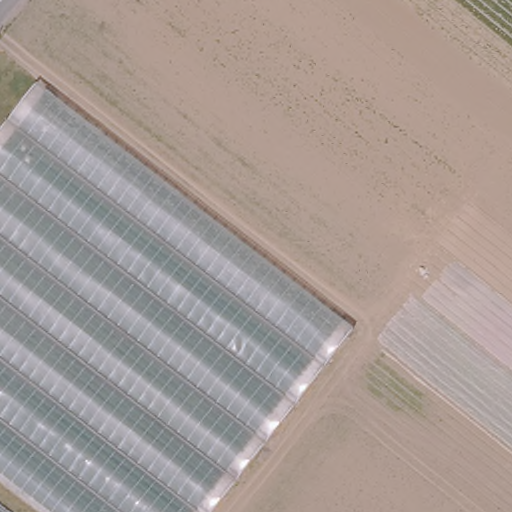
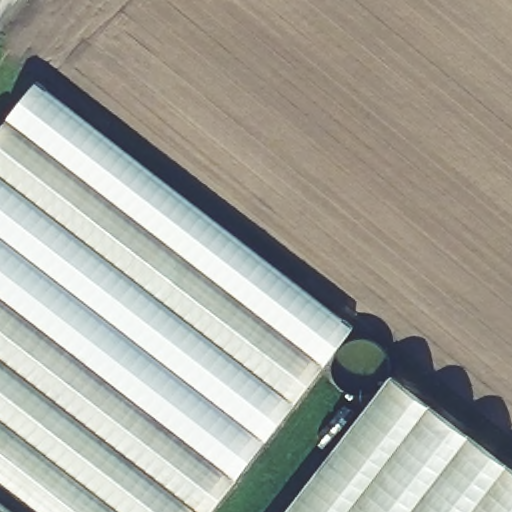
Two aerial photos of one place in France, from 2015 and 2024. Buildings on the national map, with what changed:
unchanged [(349,329),(211,512),(38,512),(0,483),(0,130),(36,83),(349,329)]
new [(512,470),(512,512),(288,512),(392,378),(512,470)]
unchanged [(13,512),(0,512),(0,502),(13,512)]

